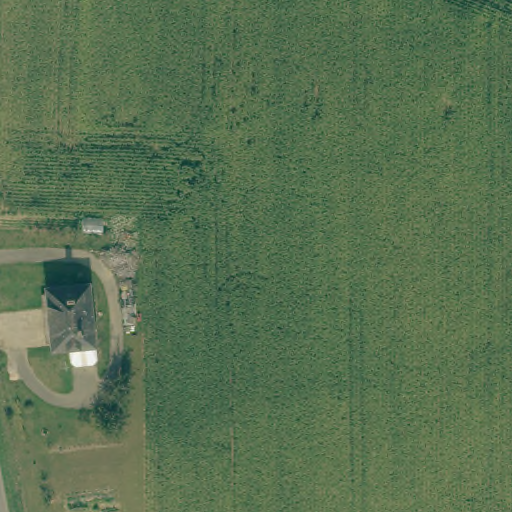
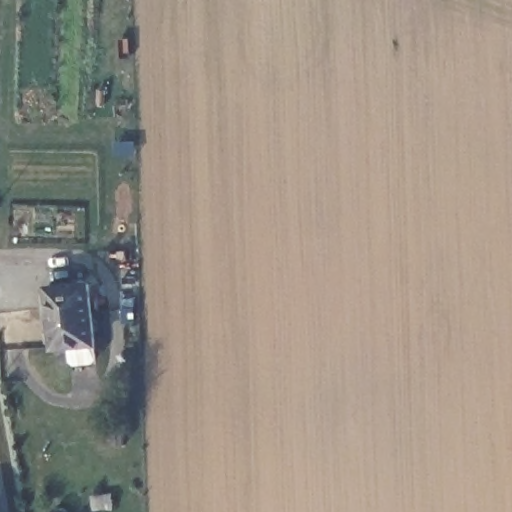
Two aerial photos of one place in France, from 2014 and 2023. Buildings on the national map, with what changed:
unchanged [(92,284),(95,347),(96,361),(92,365),(75,366),(71,362),(70,348),(53,350),(51,287),(92,284)]

